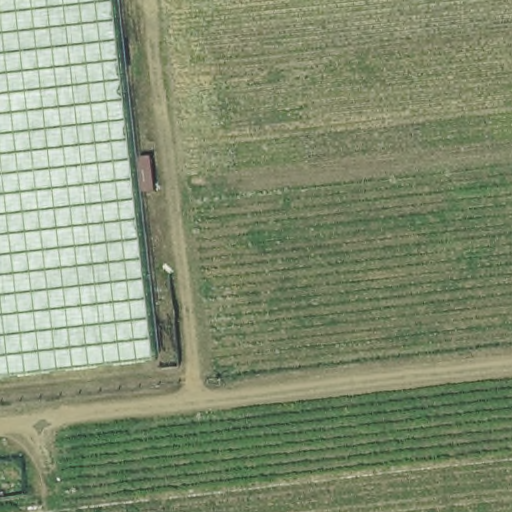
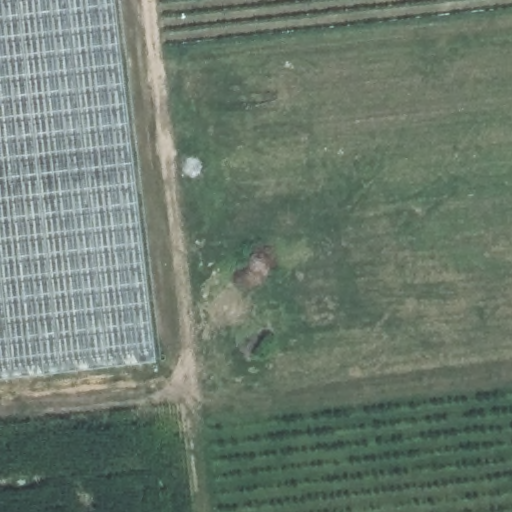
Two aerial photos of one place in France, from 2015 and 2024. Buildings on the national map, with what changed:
unchanged [(157,361),(0,379),(0,0),(117,0),(157,361)]

